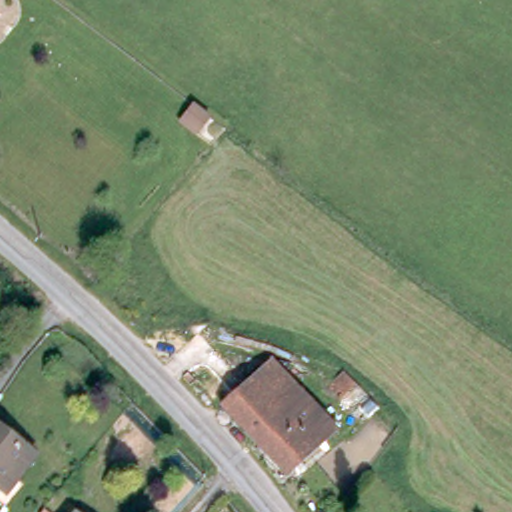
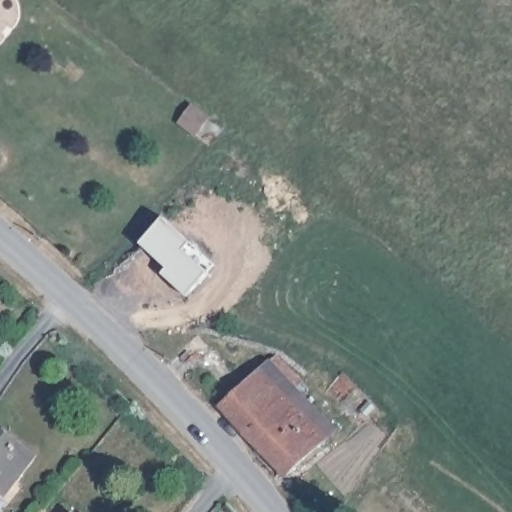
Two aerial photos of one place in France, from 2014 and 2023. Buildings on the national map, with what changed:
new [(210,273),(189,298),(163,275),(168,269),(140,245),(163,217),(192,243),(217,264),(210,273)]
unchanged [(275,369),(300,393),(256,438),(232,413),(275,369)]
unchanged [(340,433),(297,478),(256,438),(300,393),(340,433)]
unchanged [(0,438),(32,463),(6,497),(0,492),(0,438)]
unchanged [(49,511),(50,512),(48,512),(49,511)]

